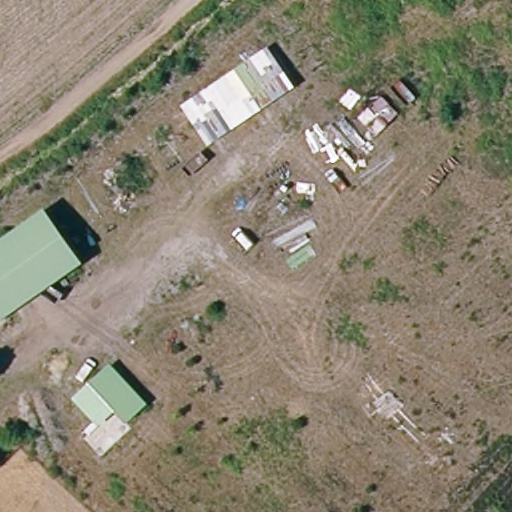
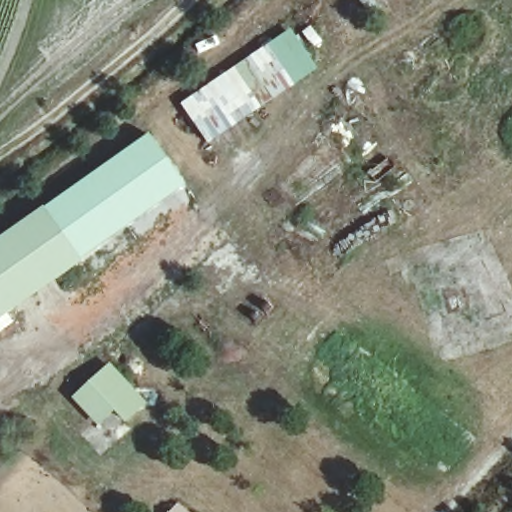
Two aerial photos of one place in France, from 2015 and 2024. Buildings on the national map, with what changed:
unchanged [(297,87),(209,145),(181,103),(269,42),(297,87)]
new [(149,135),(186,186),(77,266),(44,216),(149,135)]
unchanged [(44,216),(77,266),(0,316),(0,244),(44,216)]
unchanged [(147,403),(126,424),(113,410),(95,425),(71,398),(111,362),(147,403)]
new [(171,512),(180,502),(191,512),(171,512)]

